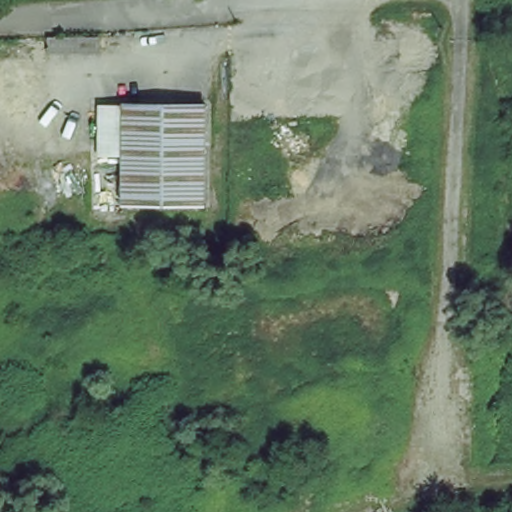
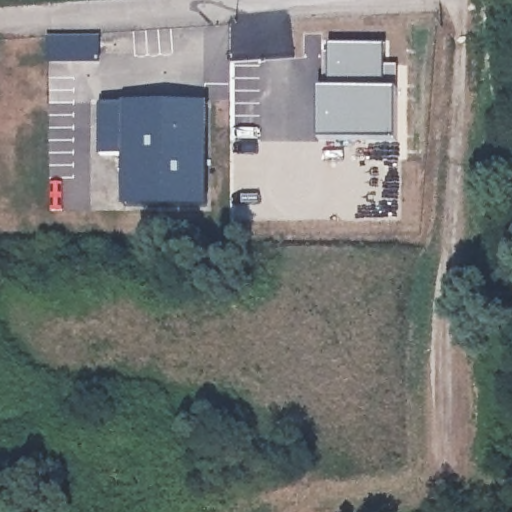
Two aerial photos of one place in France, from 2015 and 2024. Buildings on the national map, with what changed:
new [(47,39),(98,35),(100,61),(48,64),(47,39)]
new [(328,43),(384,44),(384,64),(397,64),(397,89),(326,86),(328,43)]
new [(319,86),(326,86),(397,89),(396,141),(318,140),(319,86)]
unchanged [(117,111),(200,105),(204,206),(125,210),(121,163),(117,111)]
unchanged [(100,163),(95,112),(117,111),(121,163),(100,163)]

